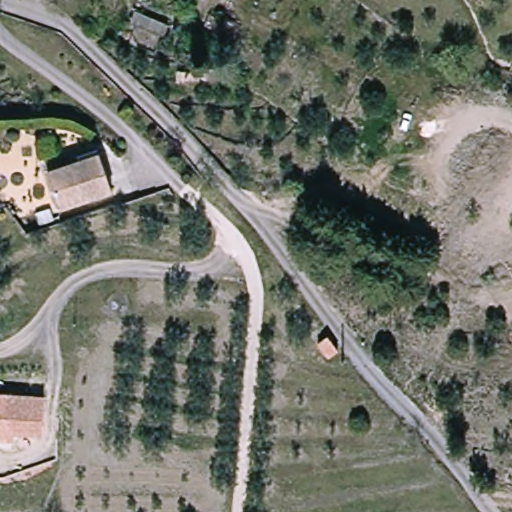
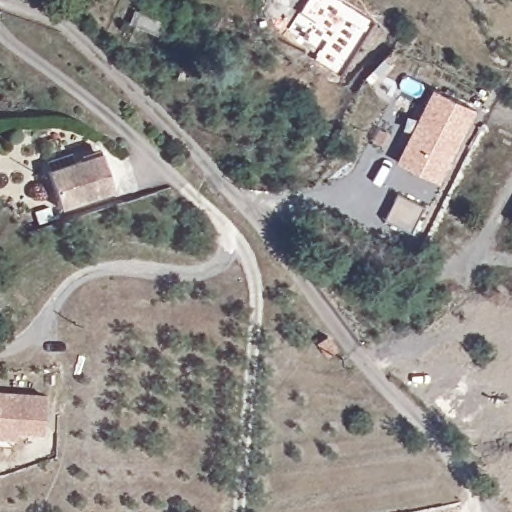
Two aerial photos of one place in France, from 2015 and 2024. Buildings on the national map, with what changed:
new [(330,33),(299,11),(306,0),(342,0),(372,20),(340,75),(315,58),(330,33)]
new [(475,108),(438,183),(397,161),(433,88),(475,108)]
unchanged [(115,185),(64,204),(52,171),(103,153),(115,185)]
unchanged [(0,438),(0,391),(45,394),(42,433),(16,431),(16,430),(15,438),(0,438)]

